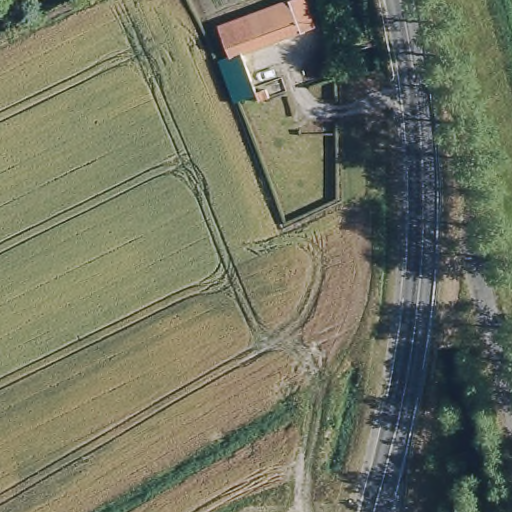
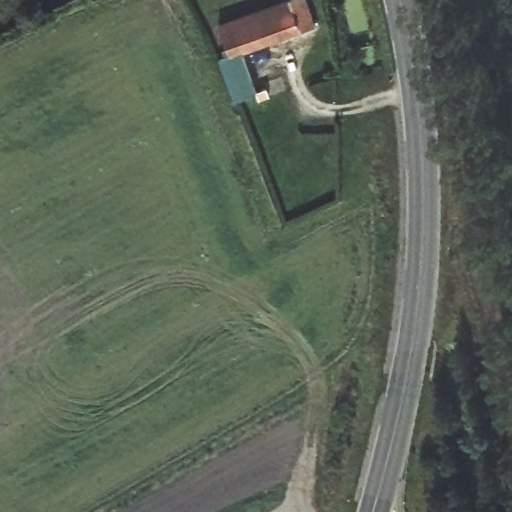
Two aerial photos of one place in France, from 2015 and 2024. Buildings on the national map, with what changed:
unchanged [(225,53),(217,26),(280,0),(299,0),(307,22),(237,51),(250,92),(230,101),(214,56),(225,53)]

